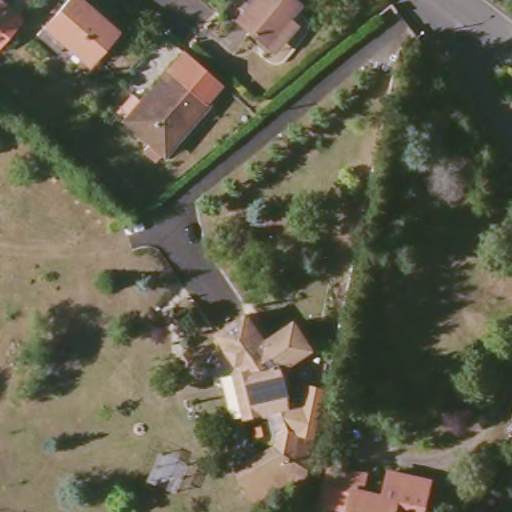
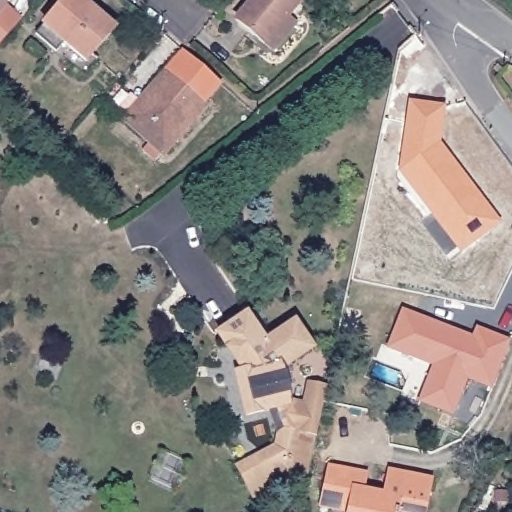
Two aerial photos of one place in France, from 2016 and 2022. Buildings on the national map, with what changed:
unchanged [(87,61),(70,44),(61,53),(40,34),(71,0),(85,0),(117,29),(87,61)]
unchanged [(242,21),(263,0),(299,0),(307,7),(269,46),(242,21)]
unchanged [(0,14),(0,3),(6,8),(0,14)]
unchanged [(196,122),(167,156),(119,116),(134,99),(140,105),(168,73),(183,56),(218,87),(204,104),(207,107),(196,122)]
new [(442,107),(438,145),(497,224),(477,240),(474,235),(446,256),(421,225),(432,216),(402,172),(411,104),(442,107)]
new [(404,311),(475,335),(477,328),(512,342),(512,344),(493,391),(467,381),(454,418),(354,382),(367,342),(387,349),(404,311)]
unchanged [(225,348),(218,336),(251,315),(267,341),(291,326),(309,355),(284,370),(294,404),(302,435),(292,457),(265,475),(254,458),(274,445),(281,428),(276,410),(250,417),(236,375),(242,375),(239,366),(235,365),(225,348)]
unchanged [(382,470),(428,480),(422,512),(396,512),(392,511),(392,512),(345,512),(346,510),(319,504),(327,465),(364,473),(360,490),(376,494),(382,470)]

